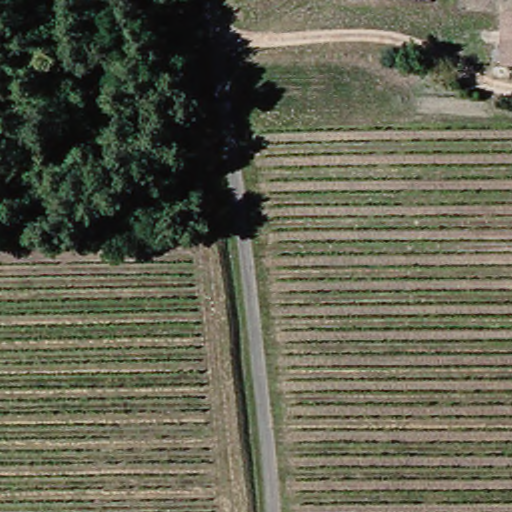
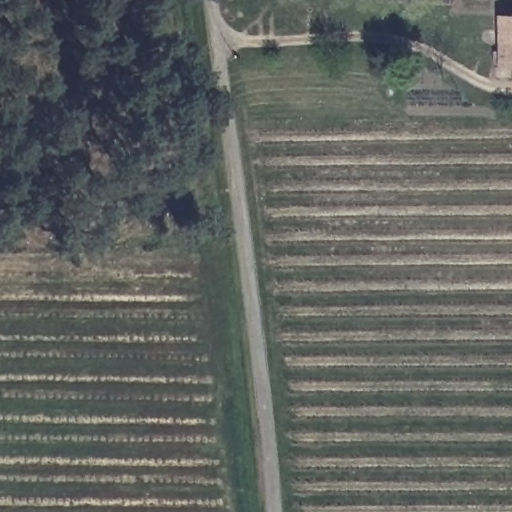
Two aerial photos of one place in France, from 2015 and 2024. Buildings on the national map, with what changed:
unchanged [(501,51),(512,51),(512,74),(502,74),(501,51)]

